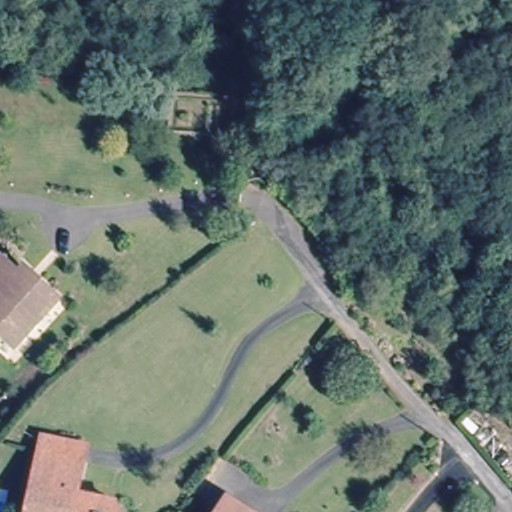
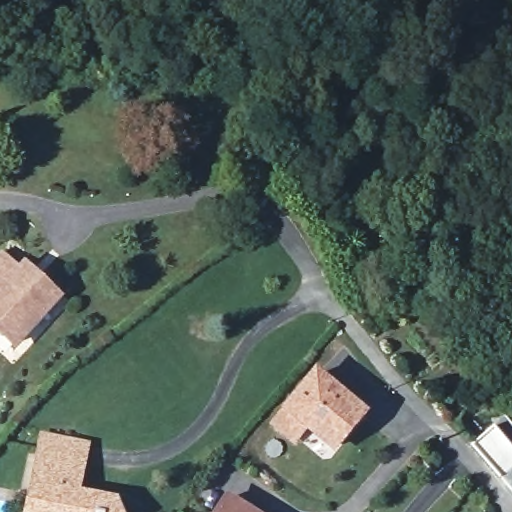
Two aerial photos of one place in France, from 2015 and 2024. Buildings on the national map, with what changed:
unchanged [(8,281),(12,276),(53,311),(17,353),(0,339),(0,274),(8,281)]
new [(269,425),(316,368),(368,412),(333,452),(307,431),(294,446),(269,425)]
unchanged [(36,458),(39,441),(83,447),(80,466),(76,496),(92,507),(93,501),(112,505),(111,512),(27,512),(36,458)]
unchanged [(231,497),(252,512),(220,512),(231,497)]

